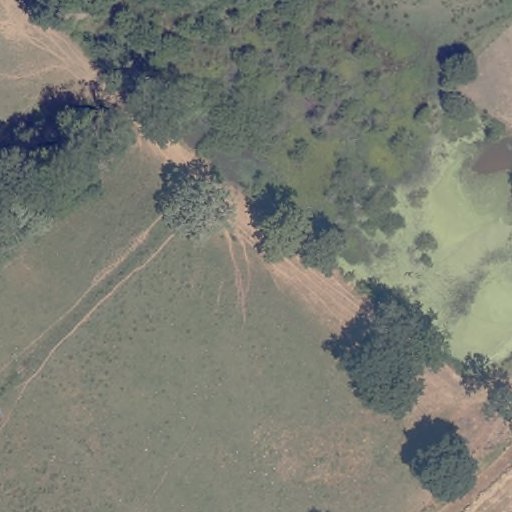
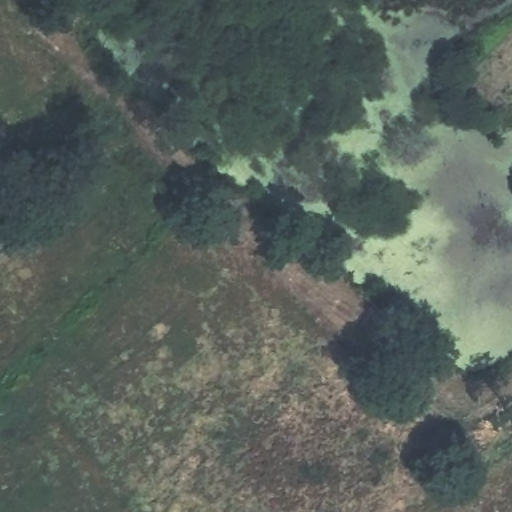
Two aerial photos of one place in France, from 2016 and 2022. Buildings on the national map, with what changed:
[]

